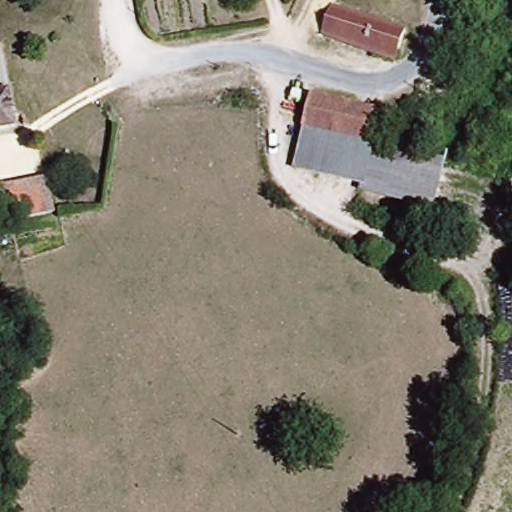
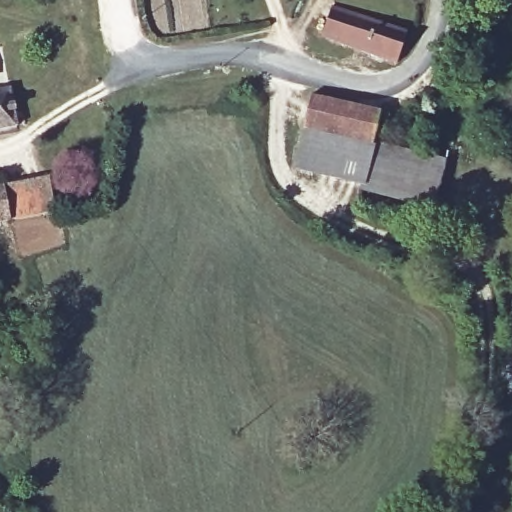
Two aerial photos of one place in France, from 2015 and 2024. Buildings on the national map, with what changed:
unchanged [(323,44),(328,17),(403,36),(395,62),(323,44)]
unchanged [(12,86),(17,127),(0,130),(0,88),(12,86)]
unchanged [(301,137),(304,108),(376,120),(372,148),(301,137)]
unchanged [(372,148),(368,184),(296,174),(301,137),(372,148)]
unchanged [(444,160),(437,202),(367,191),(368,184),(372,148),(444,160)]
unchanged [(49,181),(54,216),(0,224),(0,188),(49,181)]

